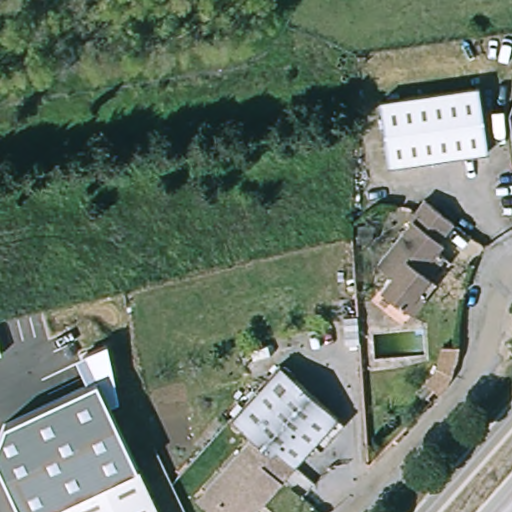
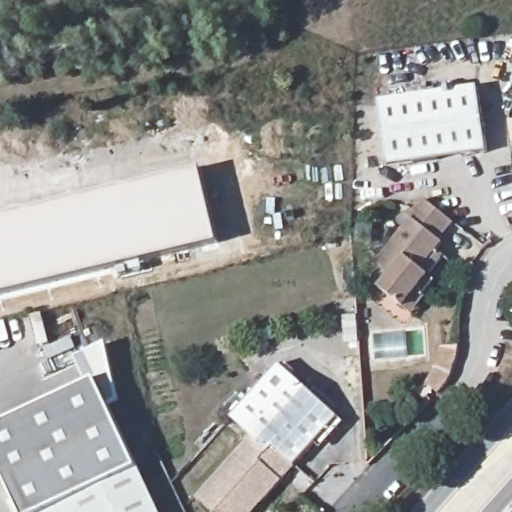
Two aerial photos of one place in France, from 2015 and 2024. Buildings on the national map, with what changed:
unchanged [(478,84),(487,146),(388,161),(380,98),(478,84)]
new [(220,244),(0,295),(0,217),(203,169),(220,244)]
unchanged [(447,218),(436,233),(440,236),(434,244),(439,249),(425,267),(429,270),(420,282),(423,287),(408,307),(377,283),(388,267),(373,256),(407,216),(407,209),(419,195),(447,218)]
unchanged [(35,512),(25,512),(0,462),(0,440),(6,423),(87,385),(76,358),(108,343),(119,402),(109,405),(136,463),(35,512)]
unchanged [(440,348),(460,347),(459,352),(457,362),(449,377),(437,391),(425,382),(435,368),(438,357),(440,348)]
unchanged [(203,500),(210,492),(254,441),(234,424),(280,366),(340,419),(271,502),(263,512),(217,512),(203,500)]
unchanged [(160,512),(35,512),(136,463),(160,512)]

